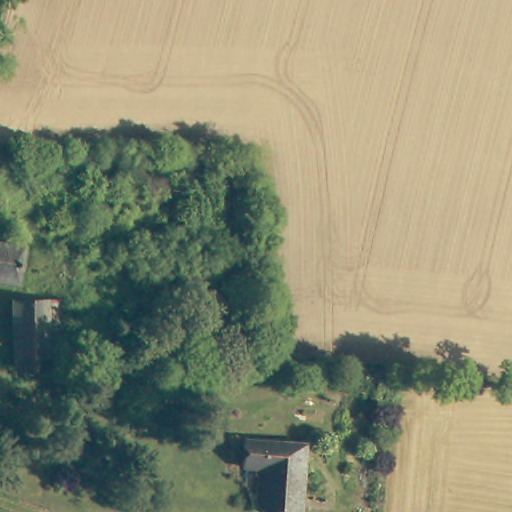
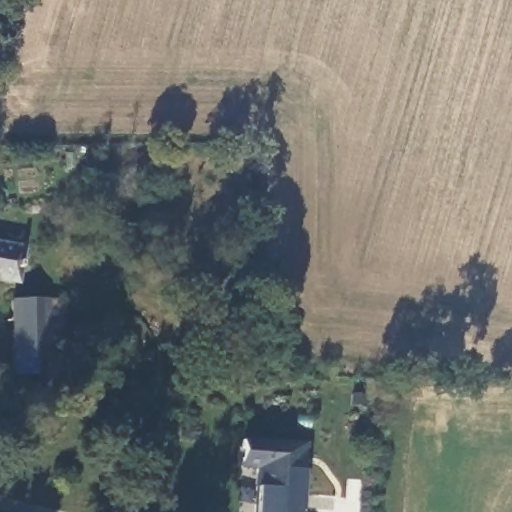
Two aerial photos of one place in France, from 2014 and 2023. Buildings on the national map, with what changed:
unchanged [(29,243),(31,243),(27,282),(0,279),(0,239),(29,243)]
unchanged [(54,359),(45,359),(45,368),(40,370),(20,374),(24,296),(58,298),(54,359)]
unchanged [(260,512),(261,468),(247,468),(249,442),(307,444),(304,512),(260,512)]

